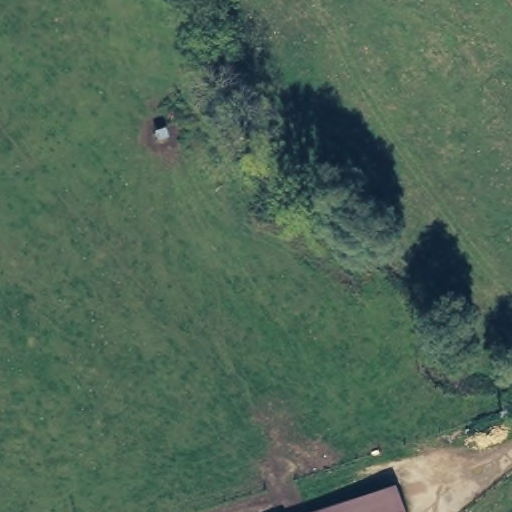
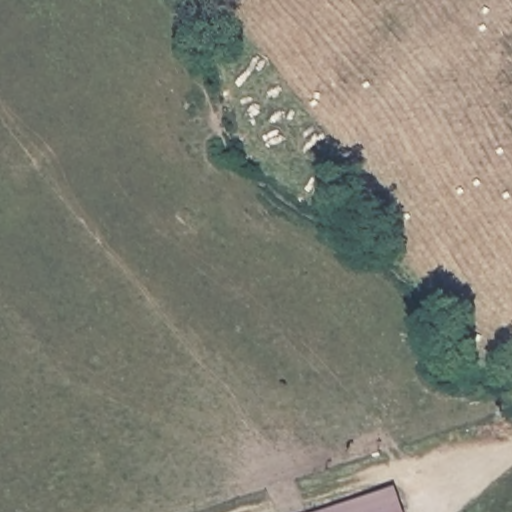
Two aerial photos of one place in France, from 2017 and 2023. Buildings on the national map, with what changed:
unchanged [(402,512),(316,512),(392,486),(402,512)]

